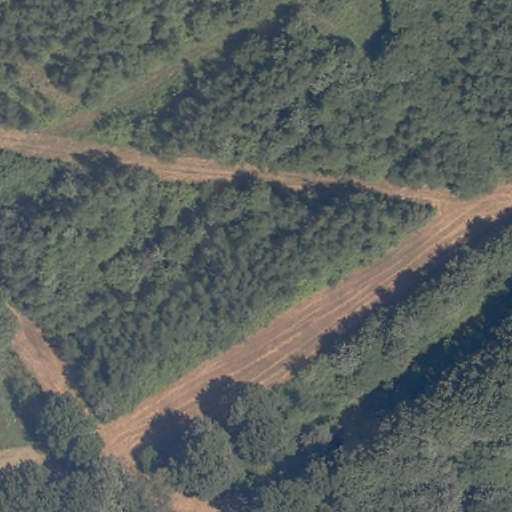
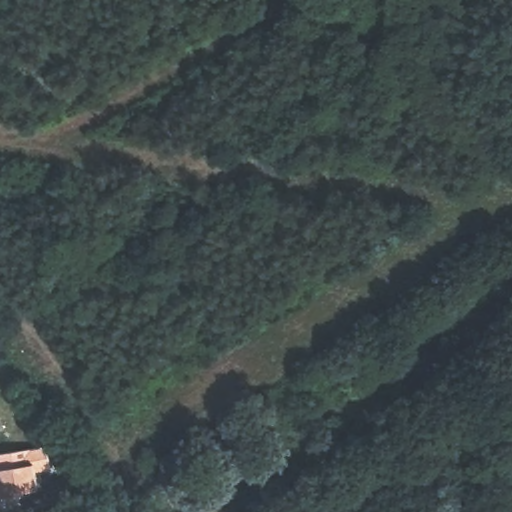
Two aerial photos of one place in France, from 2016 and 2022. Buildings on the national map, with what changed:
new [(46,455),(48,467),(33,469),(35,484),(15,487),(16,491),(0,494),(0,452),(39,445),(46,455)]

